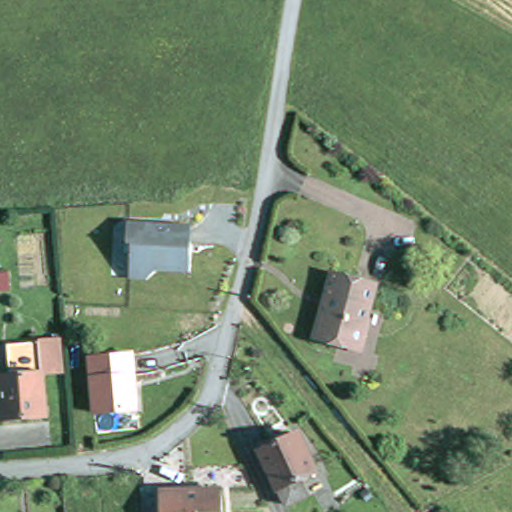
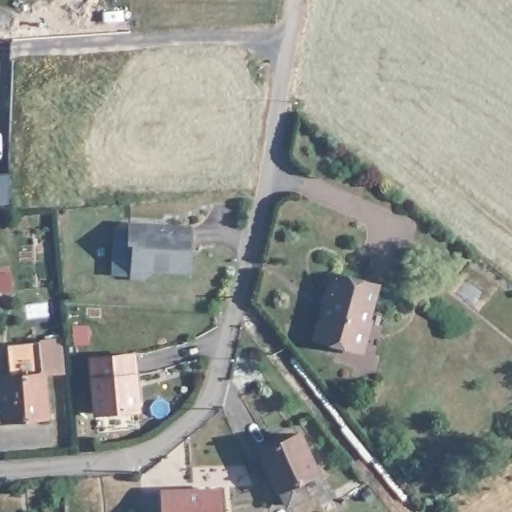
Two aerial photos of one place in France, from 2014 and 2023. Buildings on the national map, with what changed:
new [(10,203),(0,204),(0,173),(8,172),(10,203)]
unchanged [(191,270),(156,271),(156,281),(136,280),(133,222),(193,219),(191,270)]
unchanged [(0,264),(1,264),(3,281),(0,281),(0,264)]
unchanged [(333,274),(374,287),(374,288),(358,343),(356,348),(314,337),(318,323),(333,274)]
unchanged [(13,377),(9,346),(60,341),(63,372),(43,374),(13,377)]
unchanged [(103,357),(135,355),(138,411),(108,413),(95,414),(93,358),(103,357)]
unchanged [(47,416),(5,421),(1,378),(13,377),(43,374),(47,416)]
unchanged [(295,476),(303,491),(284,501),(256,447),(295,429),(314,466),(295,476)]
unchanged [(214,492),(214,512),(160,512),(159,492),(214,492)]

